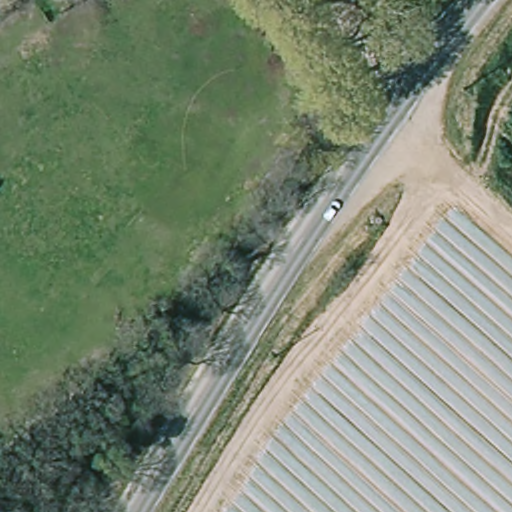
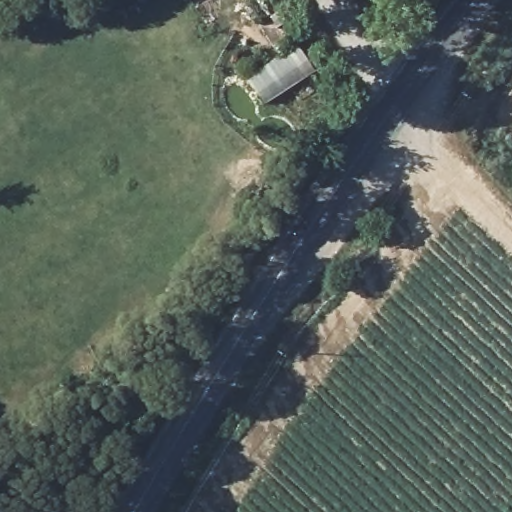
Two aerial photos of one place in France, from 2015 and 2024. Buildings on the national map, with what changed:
new [(296,46),(312,69),(264,101),(248,77),(296,46)]

